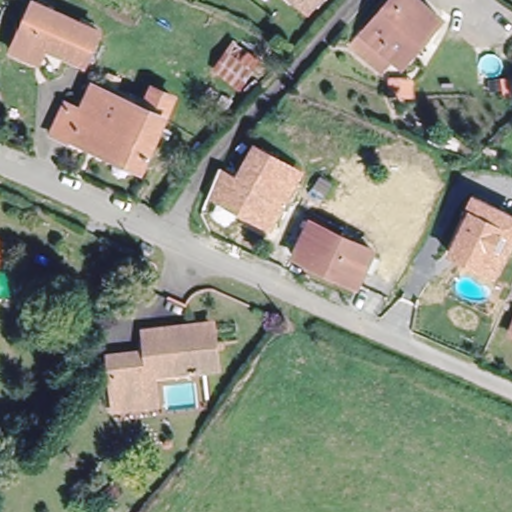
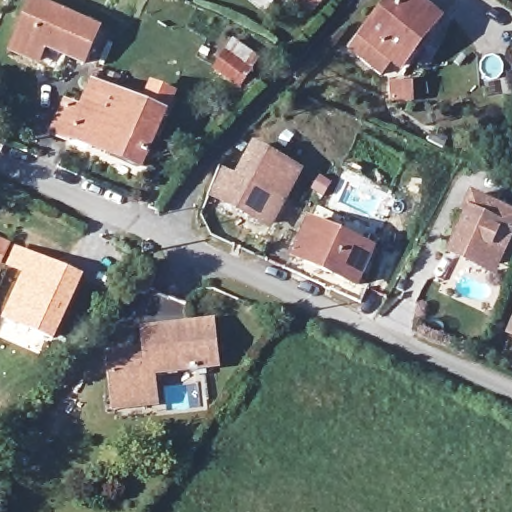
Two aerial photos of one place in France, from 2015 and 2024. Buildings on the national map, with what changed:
unchanged [(354,21),(360,25),(382,0),(423,0),(436,12),(397,56),(387,49),(374,62),(343,34),(354,21)]
unchanged [(84,63),(71,58),(46,47),(39,61),(13,50),(34,2),(87,25),(98,29),(84,63)]
unchanged [(144,161),(69,129),(67,135),(54,130),(68,99),(82,104),(93,79),(143,101),(152,80),(174,90),(144,161)]
unchanged [(282,194),(267,222),(260,233),(199,199),(209,179),(227,188),(244,155),(289,180),(282,194)]
unchanged [(496,278),(447,256),(468,210),(474,195),(512,213),(512,242),(496,278)]
unchanged [(357,284),(294,254),(309,220),(373,249),(357,284)]
unchanged [(0,258),(0,259),(0,240),(7,243),(0,258)]
new [(6,267),(15,248),(85,278),(55,344),(2,321),(23,276),(6,267)]
unchanged [(108,396),(103,359),(143,354),(140,332),(199,324),(207,323),(209,342),(212,361),(204,362),(192,363),(193,368),(183,369),(182,365),(145,369),(148,391),(149,401),(109,406),(108,396)]
unchanged [(509,331),(512,324),(512,332),(509,331)]

